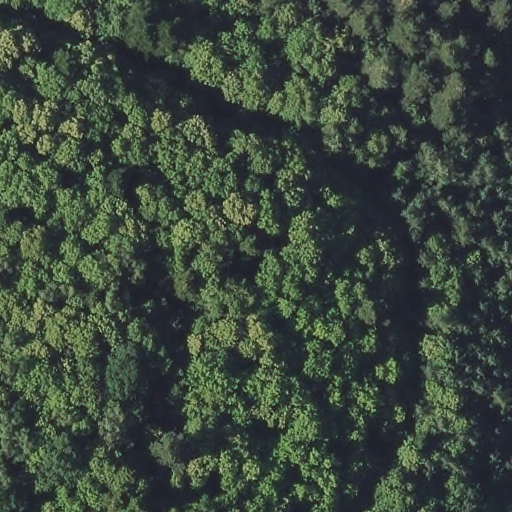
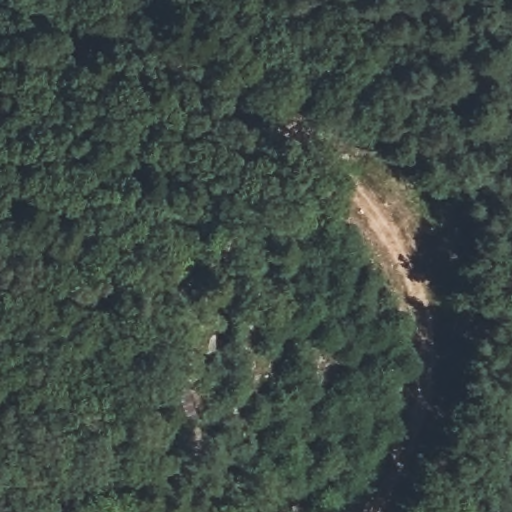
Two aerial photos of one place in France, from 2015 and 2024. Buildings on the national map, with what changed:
unchanged [(174,415),(154,420),(149,396),(165,390),(174,415)]

